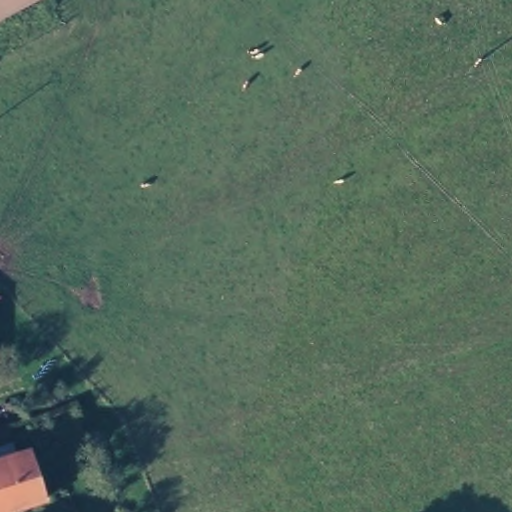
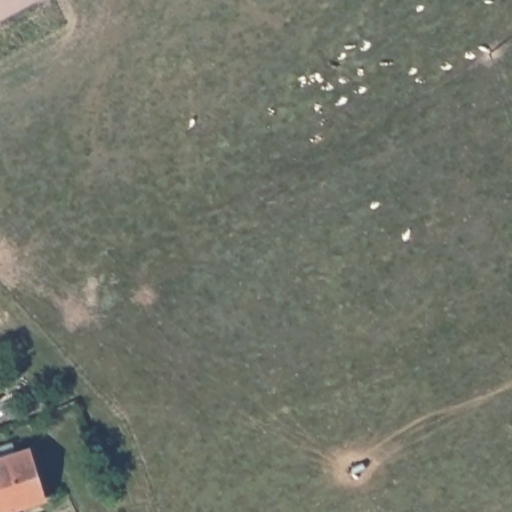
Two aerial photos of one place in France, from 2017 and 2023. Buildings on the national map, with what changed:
unchanged [(19,8),(0,17),(0,0),(15,0),(19,8)]
unchanged [(19,8),(15,0),(39,0),(19,8)]
unchanged [(32,443),(51,499),(14,510),(14,512),(0,512),(0,453),(32,443)]

